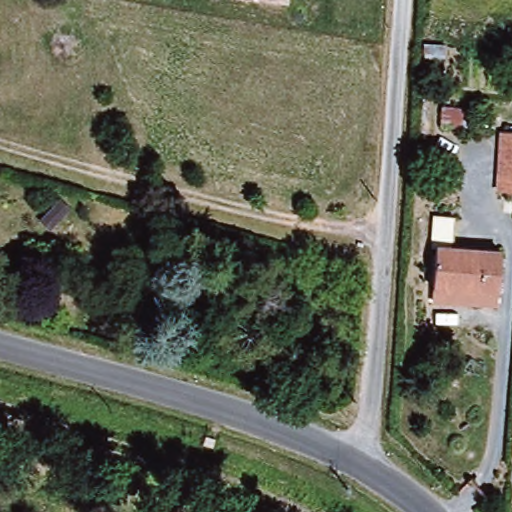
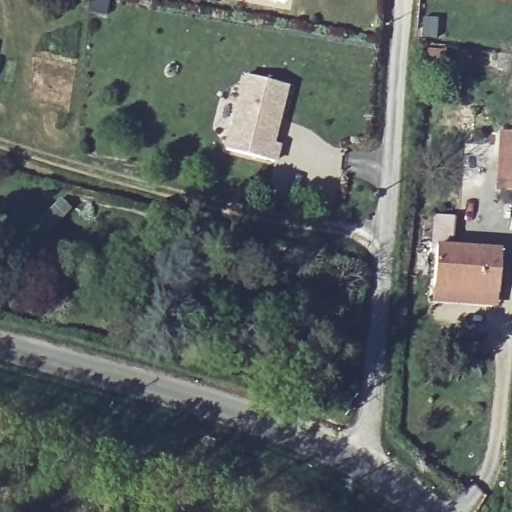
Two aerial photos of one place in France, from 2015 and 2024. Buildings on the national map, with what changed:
new [(502,0),(512,0),(512,1),(502,0)]
new [(245,75),(287,85),(272,143),(278,145),(274,161),(227,149),(245,75)]
unchanged [(504,127),(512,128),(512,191),(500,191),(504,127)]
unchanged [(428,299),(429,284),(431,245),(498,249),(495,288),(493,302),(428,299)]
unchanged [(222,444),(214,441),(217,434),(225,438),(222,444)]

